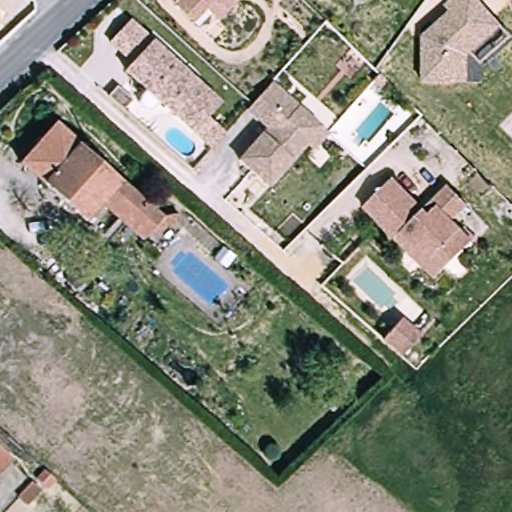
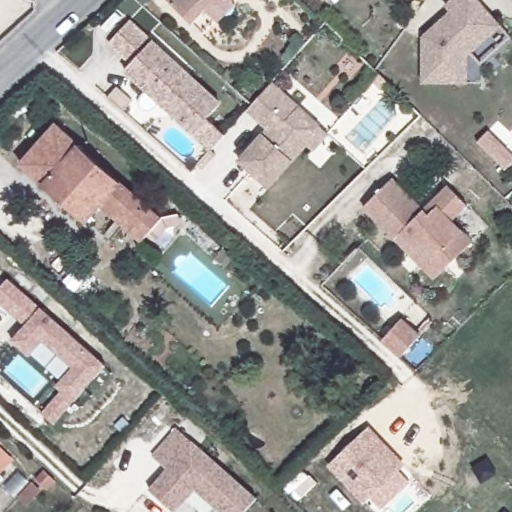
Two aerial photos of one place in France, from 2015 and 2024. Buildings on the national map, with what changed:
unchanged [(204,45),(191,32),(161,2),(163,0),(241,0),(232,10),(235,14),(204,45)]
unchanged [(481,66),(471,55),(467,58),(467,85),(423,85),(423,39),(451,14),(446,7),(455,0),(476,0),(501,29),(511,40),(481,66)]
unchanged [(215,157),(129,76),(136,68),(114,47),(135,26),(224,110),(210,125),(228,142),(215,157)]
unchanged [(375,72),(383,80),(377,85),(370,77),(375,72)]
unchanged [(110,82),(126,96),(116,106),(101,92),(110,82)]
unchanged [(313,156),(306,150),(268,192),(238,166),(267,134),(247,115),(251,111),(272,88),(320,132),(328,140),(313,156)]
unchanged [(163,219),(143,242),(102,205),(85,222),(21,163),(58,123),(163,219)]
new [(512,147),(512,158),(504,167),(482,146),(496,132),(512,147)]
unchanged [(395,244),(364,211),(393,183),(424,216),(432,207),(449,192),(467,212),(451,227),(472,248),(455,264),(433,285),(395,244)]
new [(40,412),(60,391),(56,386),(71,367),(42,342),(28,357),(10,340),(24,325),(0,303),(0,286),(8,277),(42,307),(106,366),(75,402),(55,424),(40,412)]
unchanged [(390,320),(409,336),(390,356),(372,339),(390,320)]
new [(369,427),(406,465),(363,505),(326,467),(369,427)]
new [(178,512),(166,512),(147,495),(166,474),(151,461),(176,433),(255,505),(249,512),(212,512),(193,495),(178,512)]
unchanged [(0,473),(0,445),(14,457),(0,473)]
unchanged [(57,479),(48,488),(33,475),(42,465),(57,479)]
unchanged [(44,495),(30,509),(15,495),(28,480),(44,495)]

